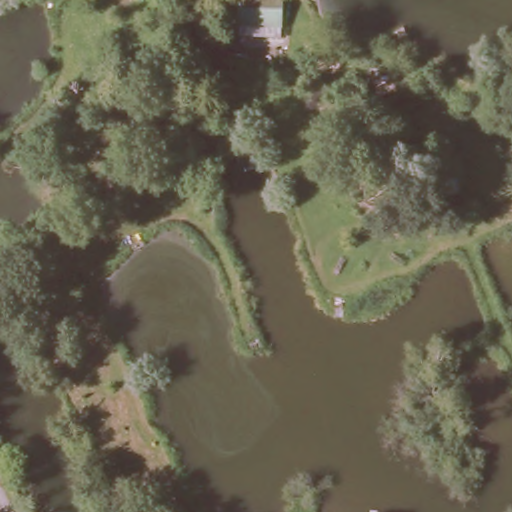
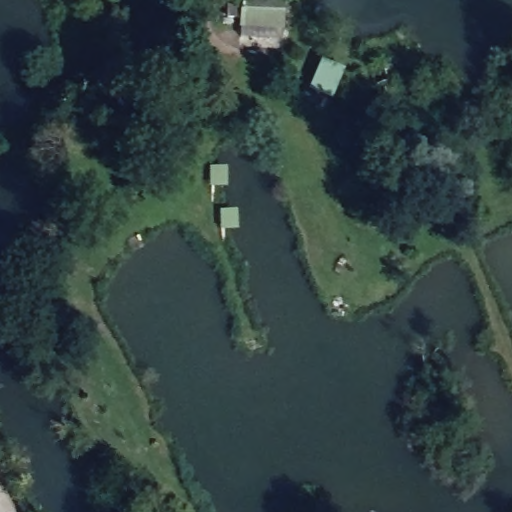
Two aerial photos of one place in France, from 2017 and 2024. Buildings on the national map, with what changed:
unchanged [(245,32),(245,0),(286,0),(286,31),(245,32)]
unchanged [(373,85),(360,70),(375,56),(388,71),(373,85)]
unchanged [(243,170),(235,143),(253,139),(261,164),(243,170)]

